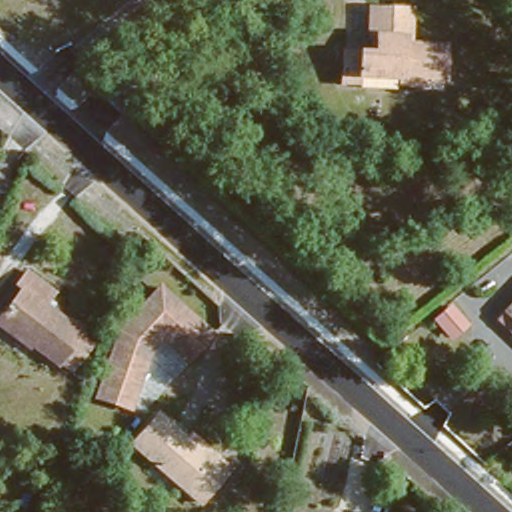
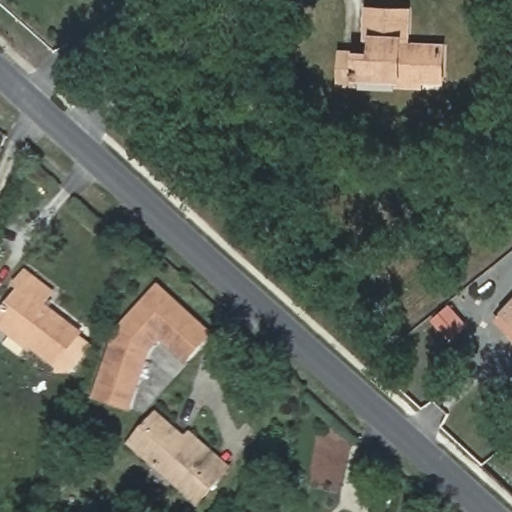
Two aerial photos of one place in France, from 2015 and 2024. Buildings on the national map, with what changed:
unchanged [(395,85),(396,78),(375,76),(376,70),(357,68),(356,82),(336,80),(341,47),(373,50),(375,34),(365,32),(368,2),(409,7),(407,36),(401,35),(401,42),(443,47),(439,82),(420,79),(418,86),(395,85)]
unchanged [(58,365),(31,344),(28,349),(0,327),(0,311),(20,285),(15,280),(24,267),(52,288),(44,301),(82,331),(94,340),(69,374),(58,365)]
unchanged [(215,333),(189,361),(161,338),(153,345),(132,410),(88,399),(112,325),(154,281),(215,333)]
unchanged [(494,312),(501,305),(512,293),(512,329),(494,312)]
unchanged [(124,442),(148,411),(179,438),(186,431),(225,464),(219,471),(194,502),(124,442)]

